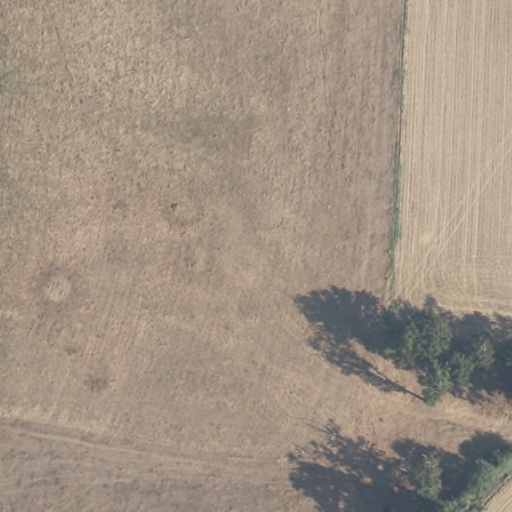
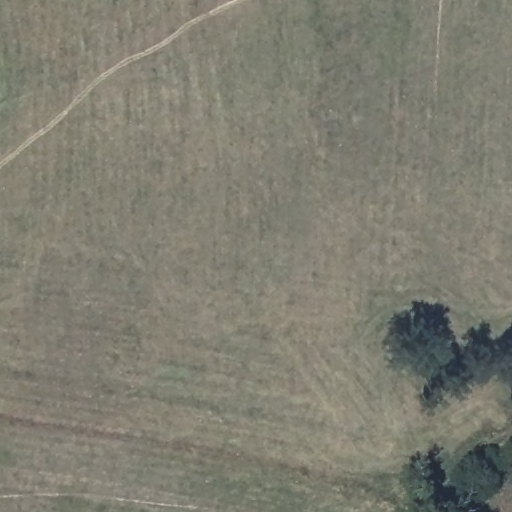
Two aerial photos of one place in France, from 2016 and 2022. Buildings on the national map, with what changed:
[]

